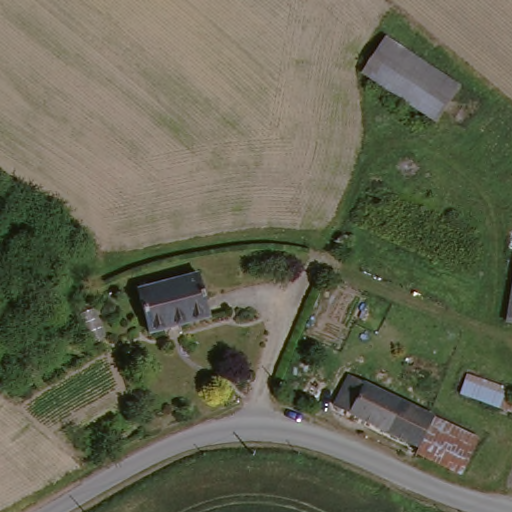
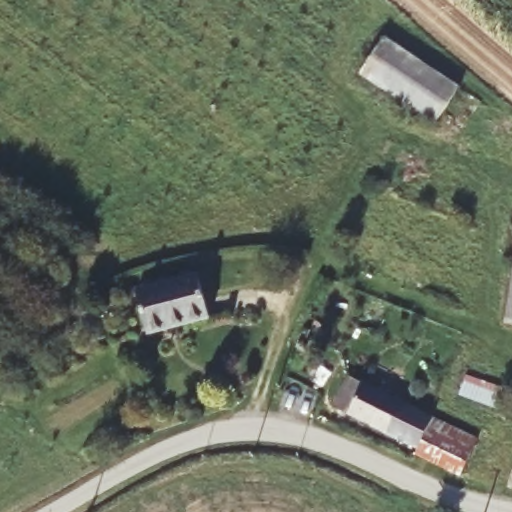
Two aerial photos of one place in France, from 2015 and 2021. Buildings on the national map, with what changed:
unchanged [(435,126),(362,80),(384,44),(456,92),(435,126)]
unchanged [(192,278),(203,319),(145,335),(133,294),(192,278)]
unchanged [(511,327),(512,317),(512,327),(511,327)]
unchanged [(330,415),(344,383),(425,421),(430,423),(416,454),(330,415)]
unchanged [(472,444),(455,481),(412,460),(416,454),(430,423),(472,444)]

